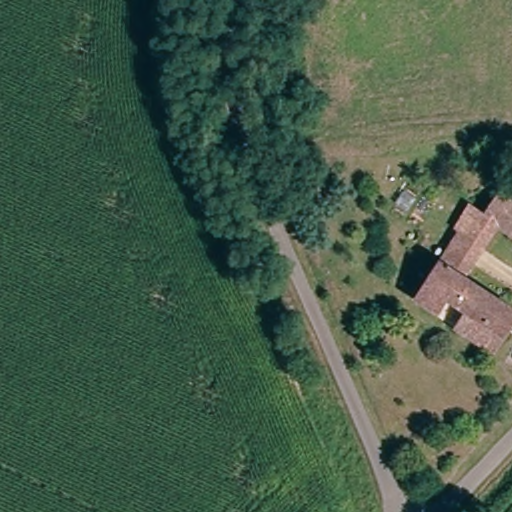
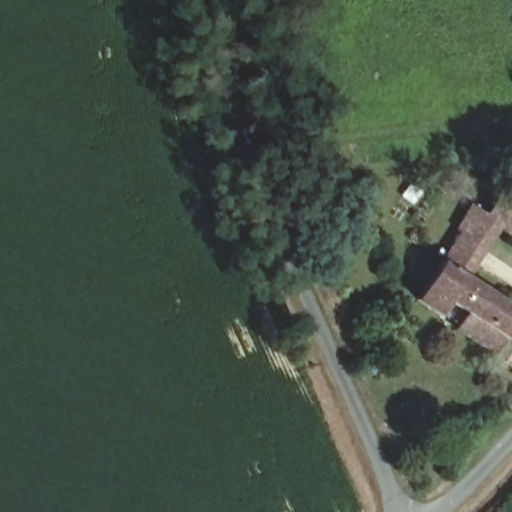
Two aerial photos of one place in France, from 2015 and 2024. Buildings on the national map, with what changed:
unchanged [(470,231),(483,212),(478,209),(493,190),(512,202),(512,232),(497,221),(485,241),(470,231)]
unchanged [(480,261),(469,273),(512,305),(512,325),(495,351),(455,325),(464,311),(443,297),(434,311),(413,296),(451,242),(480,261)]

